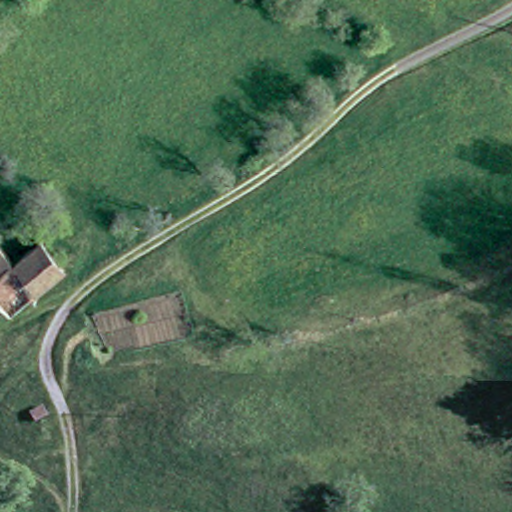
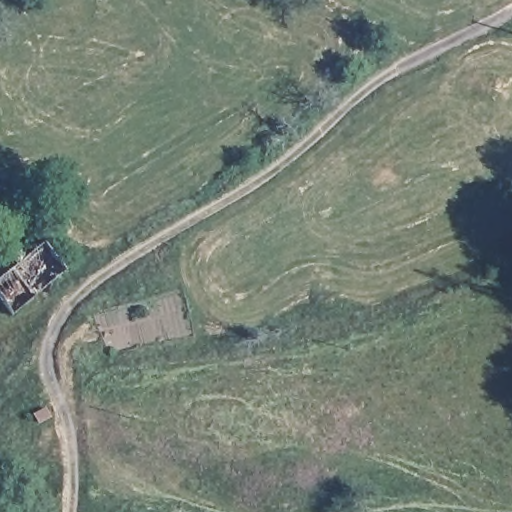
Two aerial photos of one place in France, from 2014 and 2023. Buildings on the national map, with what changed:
unchanged [(0,296),(0,254),(3,252),(14,264),(45,242),(65,266),(31,290),(10,307),(0,296)]

